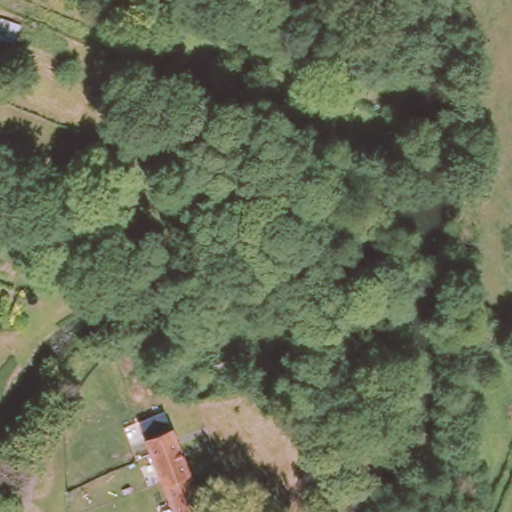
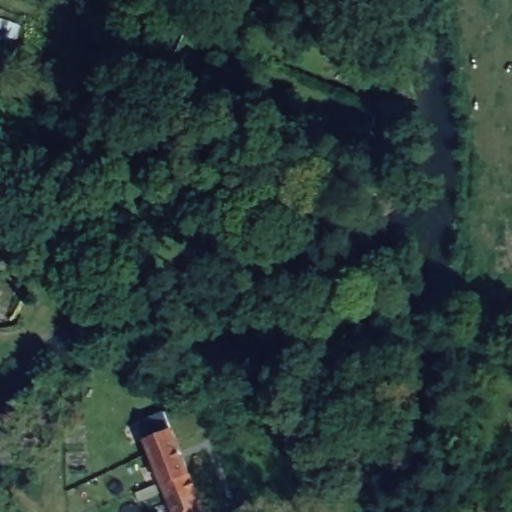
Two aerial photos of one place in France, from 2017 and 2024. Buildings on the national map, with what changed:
unchanged [(24,21),(14,48),(0,40),(0,13),(24,21)]
unchanged [(138,414),(164,405),(173,428),(207,512),(177,512),(148,439),(138,414)]

